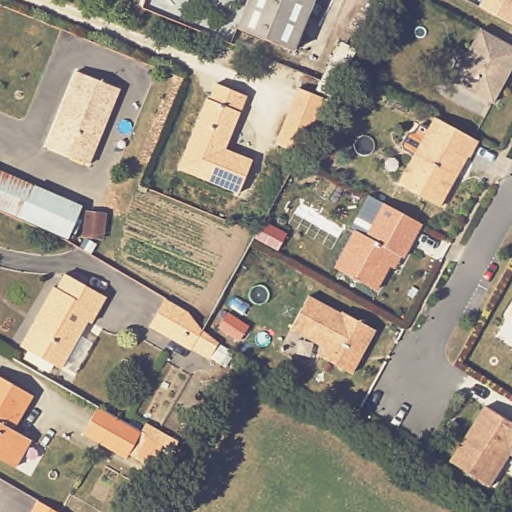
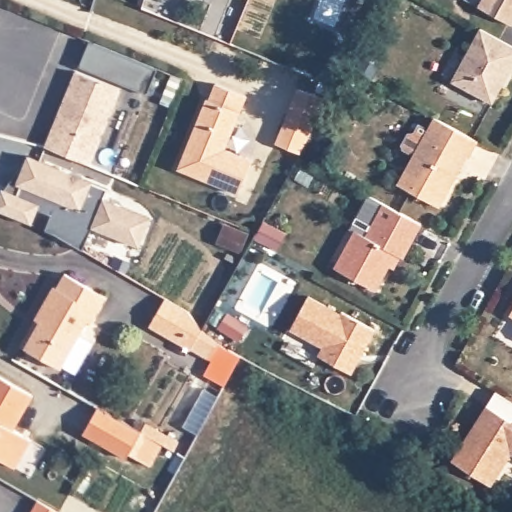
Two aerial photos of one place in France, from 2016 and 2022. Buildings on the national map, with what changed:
demolished [(248,0),(313,0),(292,51),(236,29),(248,0)]
unchanged [(480,0),(512,0),(512,20),(478,2),(480,0)]
unchanged [(480,29),(512,46),(512,67),(492,104),(452,82),(480,29)]
new [(89,41),(158,69),(147,95),(79,67),(89,41)]
unchanged [(321,82),(342,43),(356,51),(346,70),(336,88),(321,82)]
unchanged [(45,147),(76,72),(119,90),(88,166),(45,147)]
unchanged [(178,169),(206,100),(209,100),(215,84),(246,97),(224,150),(251,161),(238,194),(178,169)]
unchanged [(275,144),(298,88),(329,101),(300,154),(275,144)]
unchanged [(397,179),(434,113),(477,137),(469,152),(464,150),(452,171),(455,172),(439,202),(397,179)]
new [(1,187),(6,189),(28,155),(108,189),(104,199),(150,217),(139,247),(91,228),(82,250),(55,234),(45,230),(52,215),(38,209),(32,225),(0,212),(0,192),(1,187)]
demolished [(0,210),(0,170),(81,205),(67,239),(0,210)]
unchanged [(388,262),(375,286),(334,263),(355,226),(366,232),(383,199),(420,219),(403,254),(400,252),(394,265),(388,262)]
demolished [(84,236),(86,211),(104,213),(101,238),(84,236)]
unchanged [(75,373),(62,366),(60,368),(24,348),(40,322),(35,320),(54,287),(57,288),(65,274),(105,297),(90,323),(87,321),(79,335),(92,342),(75,373)]
unchanged [(318,351),(323,342),(290,324),(308,292),(341,310),(342,307),(375,325),(351,369),(318,351)]
unchanged [(191,348),(190,350),(149,326),(165,298),(188,312),(202,330),(203,332),(228,348),(218,363),(191,348)]
unchanged [(512,310),(512,317),(509,315),(512,310)]
unchanged [(28,396),(8,430),(26,440),(10,468),(0,462),(0,379),(28,396)]
unchanged [(487,401),(512,417),(512,449),(511,449),(491,481),(452,456),(487,401)]
unchanged [(82,433),(97,407),(141,432),(126,458),(82,433)]
new [(141,432),(146,422),(180,442),(175,452),(163,446),(151,467),(128,455),(141,432)]
unchanged [(33,495),(58,510),(62,512),(23,512),(33,495)]

